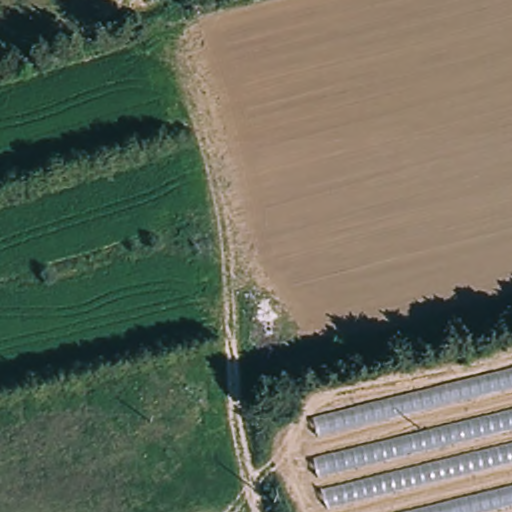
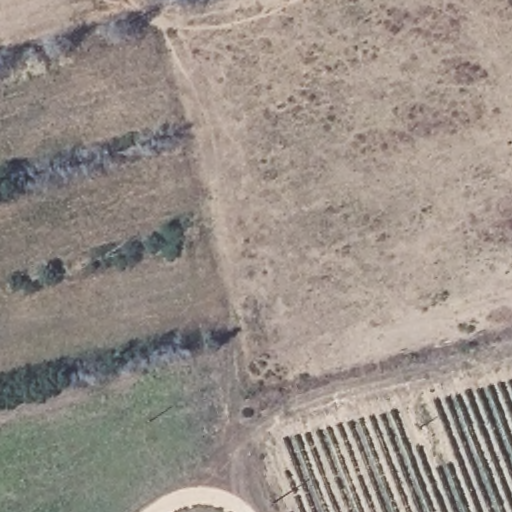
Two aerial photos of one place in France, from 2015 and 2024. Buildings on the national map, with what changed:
demolished [(312,454),(321,453),(311,414),(512,364),(512,512),(328,512),(312,454)]

